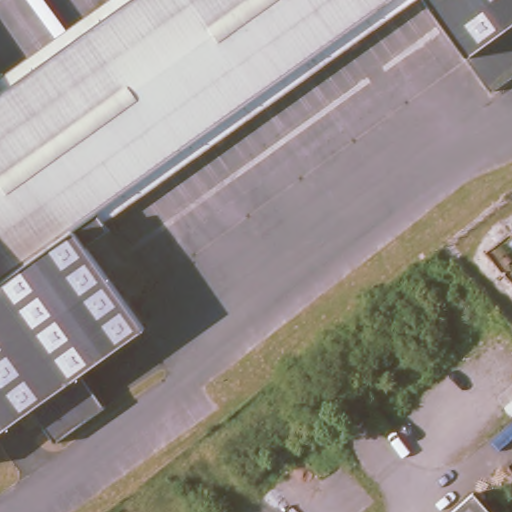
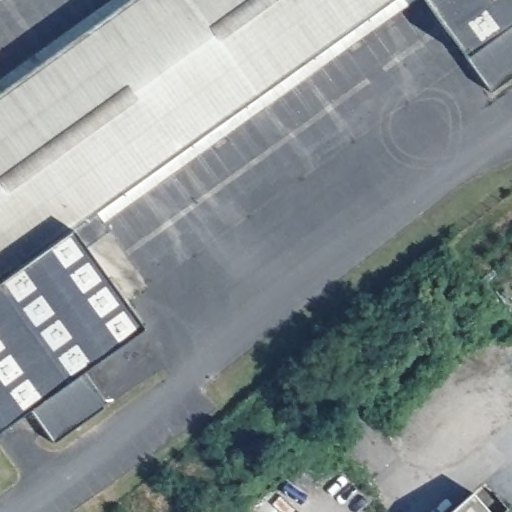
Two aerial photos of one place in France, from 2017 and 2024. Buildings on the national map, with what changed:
unchanged [(92,215),(105,233),(82,249),(102,278),(75,297),(42,251),(0,281),(0,91),(128,0),(392,0),(92,215)]
unchanged [(490,92),(467,56),(431,34),(415,0),(512,0),(512,77),(490,92)]
unchanged [(75,297),(102,278),(143,328),(78,374),(103,409),(53,445),(28,409),(0,429),(0,281),(42,251),(75,297)]
unchanged [(490,512),(446,512),(471,490),(490,512)]

